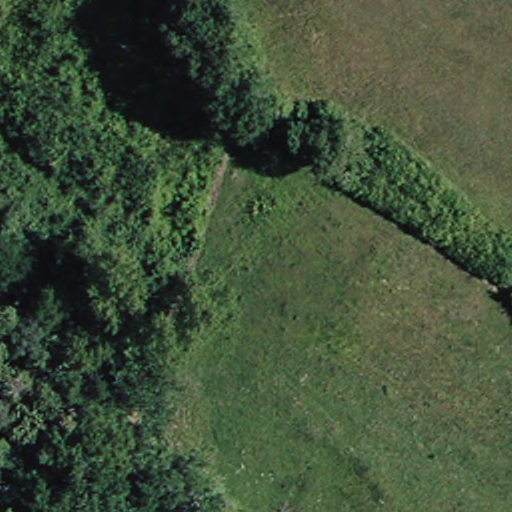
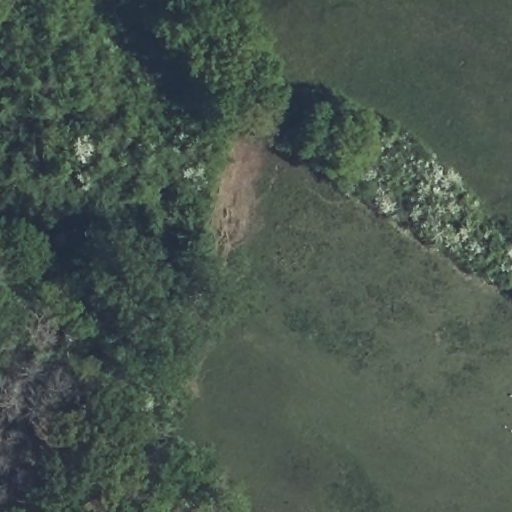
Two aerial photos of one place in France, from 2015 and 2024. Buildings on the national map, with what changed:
[]

